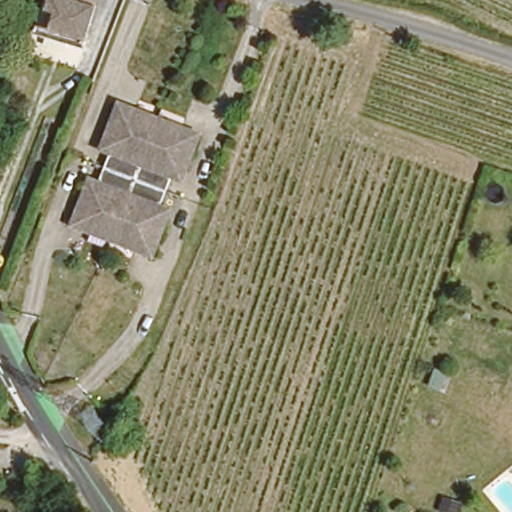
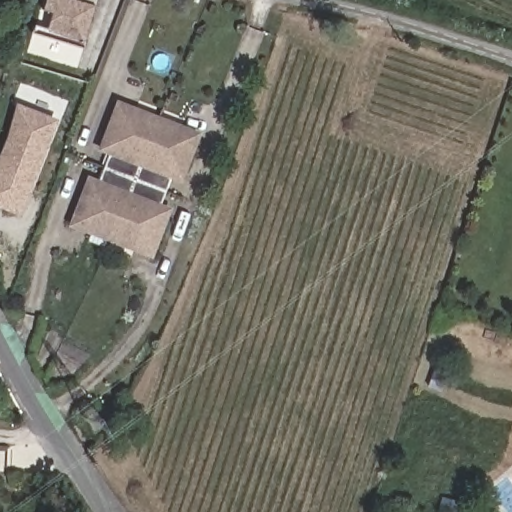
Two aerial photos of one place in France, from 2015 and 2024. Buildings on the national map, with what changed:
unchanged [(57,54),(35,48),(42,23),(35,22),(32,21),(38,0),(88,0),(84,15),(85,15),(75,51),(72,58),(57,54)]
new [(21,216),(0,208),(0,150),(18,103),(58,119),(21,216)]
unchanged [(153,121),(130,182),(100,170),(106,155),(96,152),(114,106),(153,121)]
unchanged [(193,137),(176,182),(167,179),(162,194),(130,182),(153,121),(193,137)]
unchanged [(67,226),(84,182),(94,185),(100,170),(130,182),(107,242),(67,226)]
unchanged [(162,194),(156,209),(164,212),(146,258),(107,242),(130,182),(162,194)]

